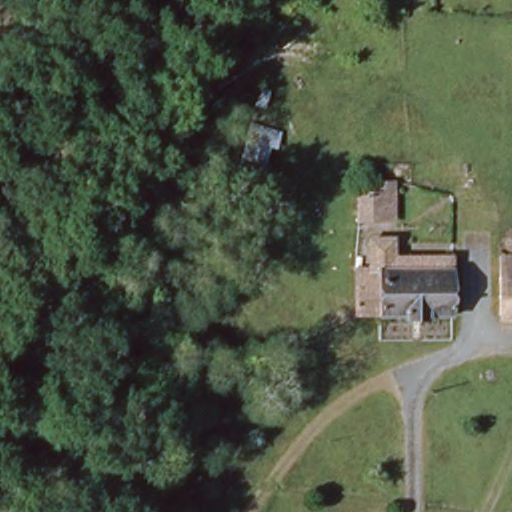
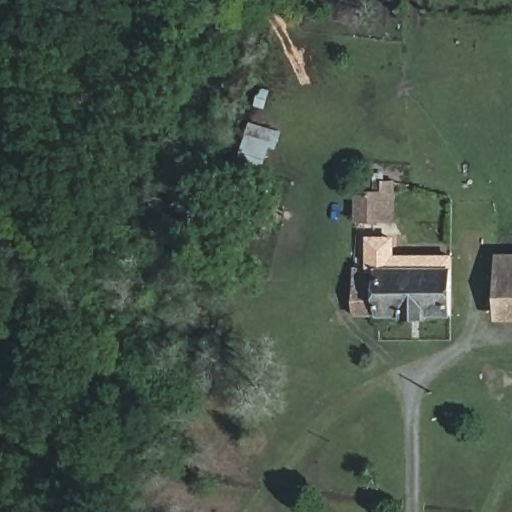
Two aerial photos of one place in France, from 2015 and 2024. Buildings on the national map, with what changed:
unchanged [(397,220),(358,221),(354,221),(355,195),(360,196),(361,183),(398,184),(397,203),(397,220)]
unchanged [(225,213),(212,252),(200,249),(212,209),(225,213)]
unchanged [(391,242),(391,260),(448,260),(447,319),(352,319),(355,242),(391,242)]
unchanged [(512,255),(512,315),(497,315),(500,255),(512,255)]

